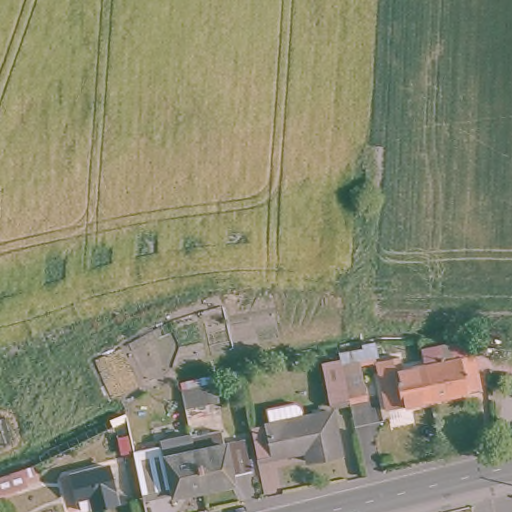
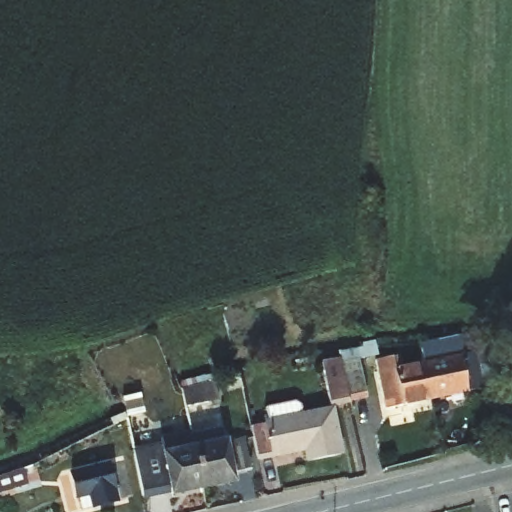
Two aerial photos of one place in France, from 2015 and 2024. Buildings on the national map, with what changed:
unchanged [(420,356),(460,350),(462,355),(479,352),(479,354),(509,355),(510,371),(483,371),(481,360),(469,364),(476,393),(429,402),(422,367),(420,356)]
unchanged [(321,363),(341,360),(341,366),(360,363),(367,399),(349,403),(330,407),(321,363)]
unchanged [(384,411),(374,364),(390,361),(393,372),(422,367),(429,402),(384,411)]
unchanged [(221,381),(223,397),(186,404),(183,388),(221,381)]
unchanged [(248,428),(331,413),(341,458),(305,464),(304,452),(254,459),(248,428)]
unchanged [(201,498),(191,444),(225,436),(228,453),(246,449),(253,479),(234,482),(236,493),(201,500),(201,498)]
unchanged [(136,459),(164,454),(163,450),(191,444),(201,498),(144,510),(136,459)]
unchanged [(113,501),(90,508),(88,495),(74,499),(68,476),(104,466),(113,501)]
unchanged [(34,475),(23,478),(25,487),(0,494),(0,478),(31,469),(34,475)]

